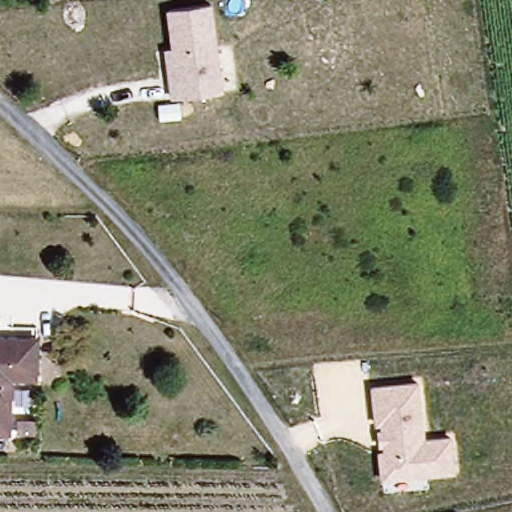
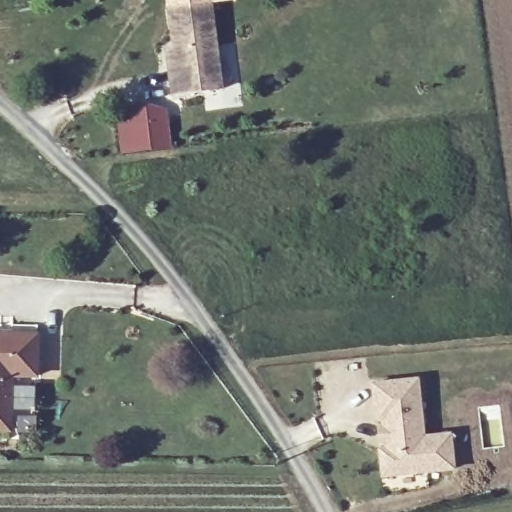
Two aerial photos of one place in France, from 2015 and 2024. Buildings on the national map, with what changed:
unchanged [(212,0),(225,90),(169,97),(164,48),(172,46),(167,6),(212,0)]
new [(147,105),(149,126),(168,124),(171,149),(121,154),(117,108),(147,105)]
unchanged [(34,380),(8,378),(5,431),(0,431),(0,336),(36,340),(34,380)]
unchanged [(426,438),(452,435),(456,469),(382,477),(378,449),(387,448),(385,421),(376,422),(372,385),(419,379),(426,438)]

